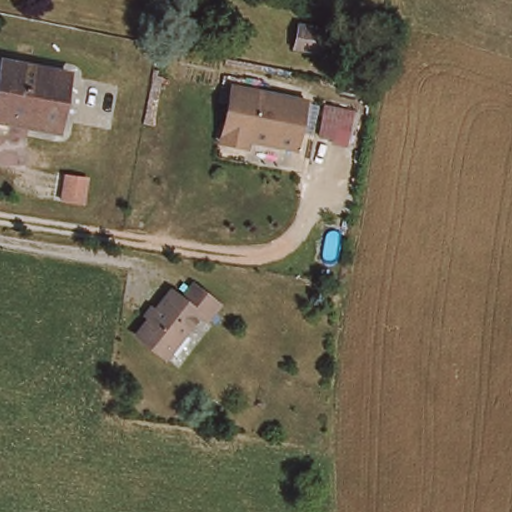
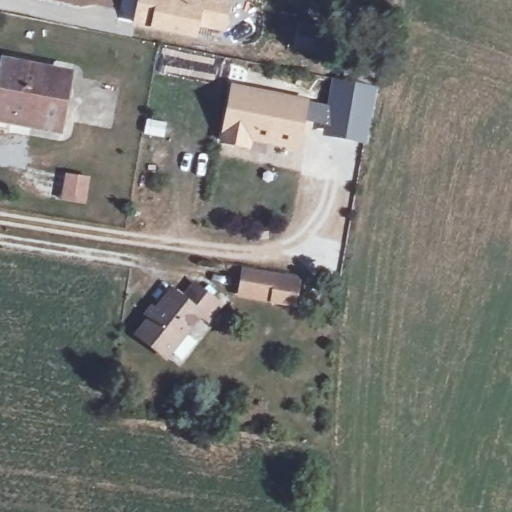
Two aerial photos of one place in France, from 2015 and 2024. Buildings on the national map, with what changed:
new [(139,0),(227,0),(235,1),(227,34),(200,26),(197,40),(152,29),(134,26),(139,0)]
unchanged [(320,52),(304,48),(297,47),(301,26),(308,28),(324,31),(320,52)]
unchanged [(61,130),(12,121),(10,131),(0,129),(0,86),(3,87),(7,64),(71,76),(61,130)]
new [(327,106),(334,80),(375,87),(366,144),(324,135),(325,125),(304,119),(307,103),(327,106)]
unchanged [(297,147),(250,137),(247,147),(222,141),(233,88),(307,103),(297,147)]
demolished [(354,106),(351,121),(336,118),(334,132),(320,130),(326,100),(354,106)]
unchanged [(87,204),(60,199),(65,173),(91,177),(87,204)]
new [(295,305),(275,302),(241,296),(245,271),(279,276),(299,280),(295,305)]
unchanged [(172,362),(143,340),(177,296),(189,305),(200,291),(222,308),(210,323),(206,320),(172,362)]

